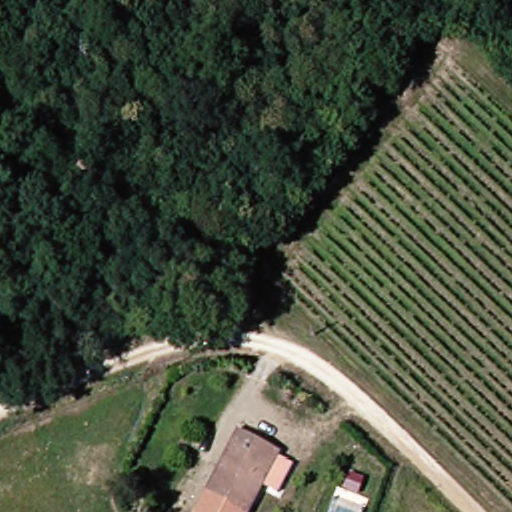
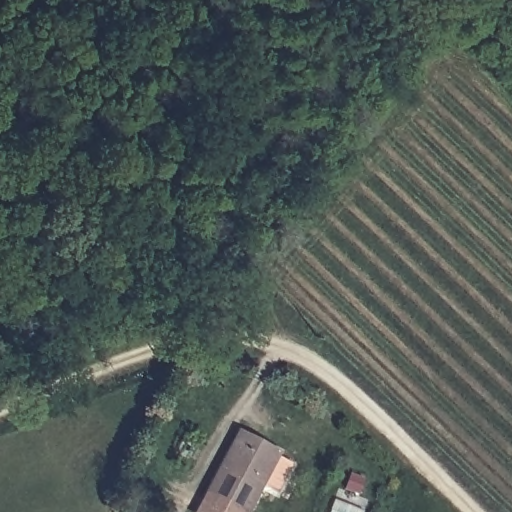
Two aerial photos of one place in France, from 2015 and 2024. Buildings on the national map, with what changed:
unchanged [(185,512),(223,442),(219,440),(229,426),(270,449),(237,512),(185,512)]

